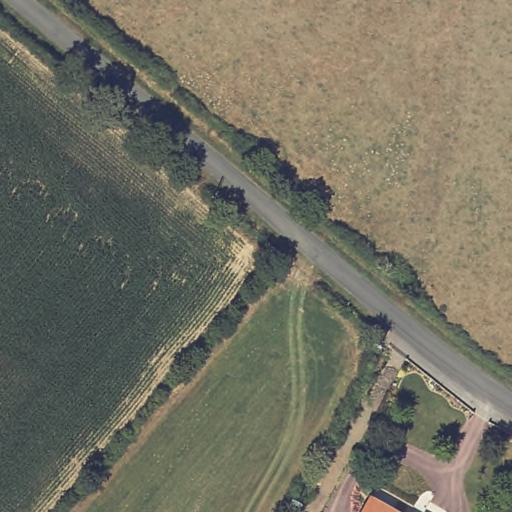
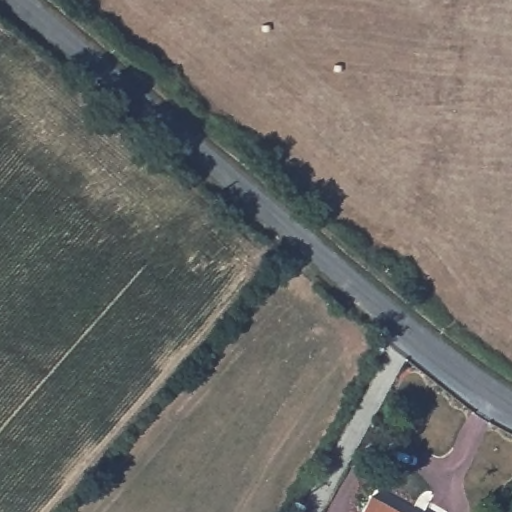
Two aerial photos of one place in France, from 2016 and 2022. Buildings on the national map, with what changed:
unchanged [(367,493),(402,512),(358,512),(367,493)]

